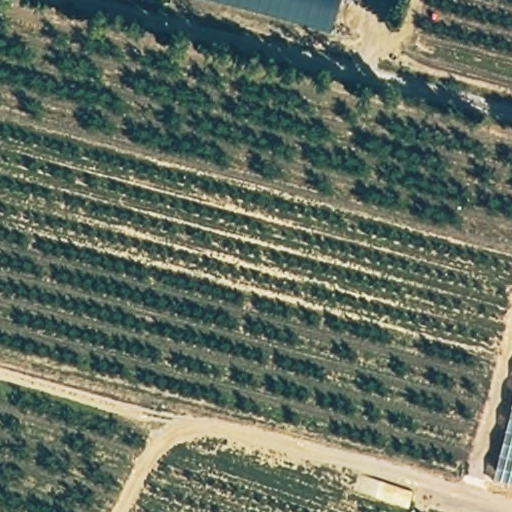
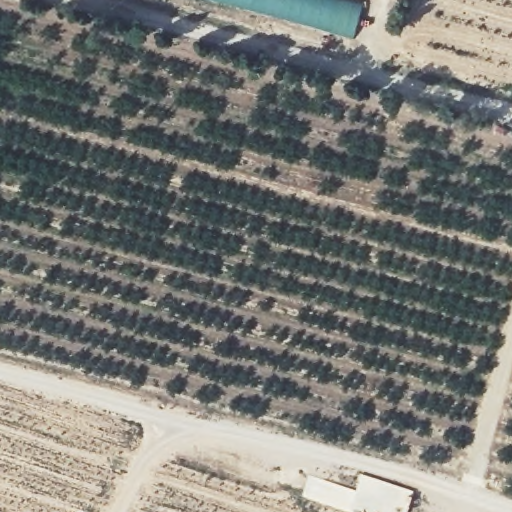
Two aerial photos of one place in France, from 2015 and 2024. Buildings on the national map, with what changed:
unchanged [(353,37),(210,0),(344,0),(361,5),(353,37)]
demolished [(493,479),(512,404),(512,484),(493,479)]

